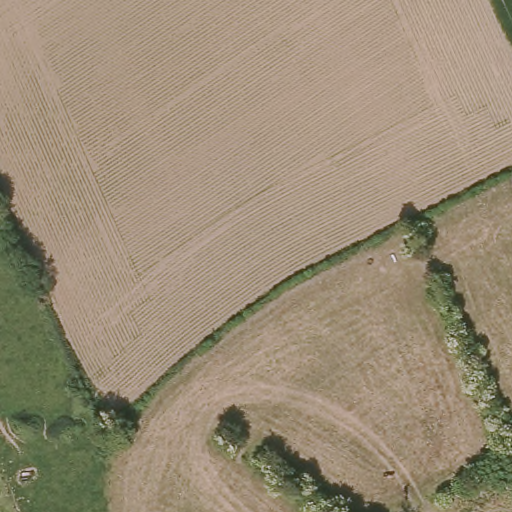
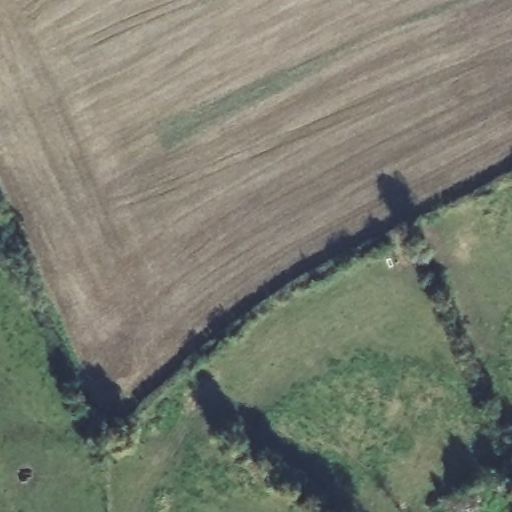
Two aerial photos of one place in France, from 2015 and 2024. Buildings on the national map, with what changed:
[]

